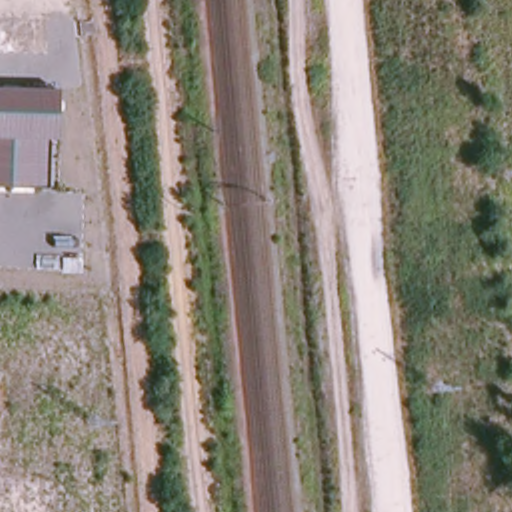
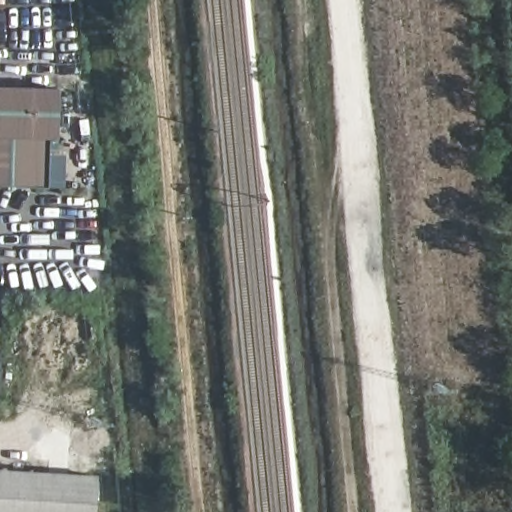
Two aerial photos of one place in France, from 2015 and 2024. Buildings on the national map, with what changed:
unchanged [(56,140),(47,140),(47,187),(0,186),(0,86),(58,89),(56,140)]
new [(102,479),(99,512),(0,512),(0,471),(102,479)]

